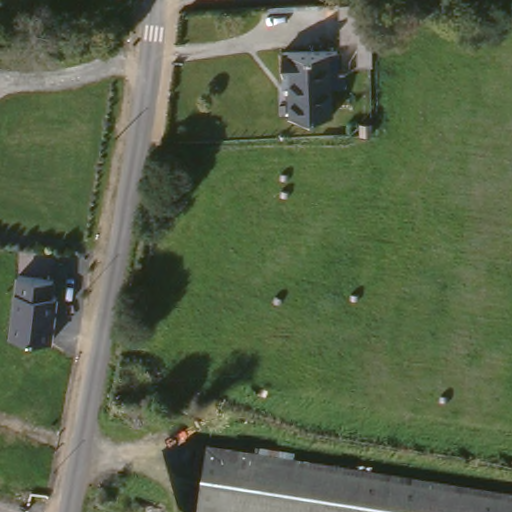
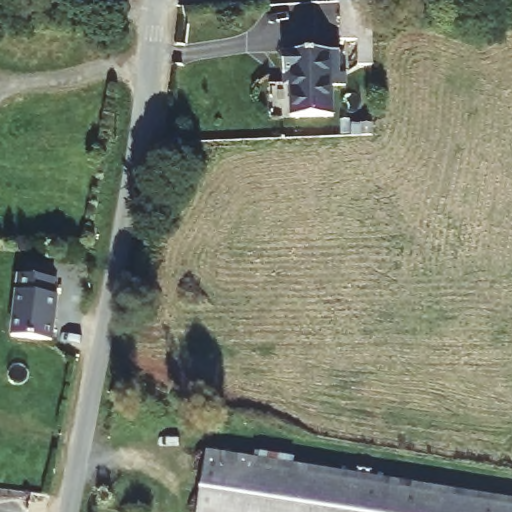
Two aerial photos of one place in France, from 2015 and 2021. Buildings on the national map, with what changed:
unchanged [(371,61),(358,61),(357,36),(341,37),(340,0),(370,0),(371,61)]
unchanged [(338,46),(338,69),(346,69),(346,81),(331,81),(333,111),(291,112),(290,79),(283,80),(283,70),(282,47),(338,46)]
unchanged [(361,125),(372,125),(373,136),(361,136),(361,125)]
unchanged [(54,277),(53,295),(58,295),(52,342),(9,337),(17,272),(54,277)]
unchanged [(512,495),(512,512),(196,512),(206,447),(512,495)]

